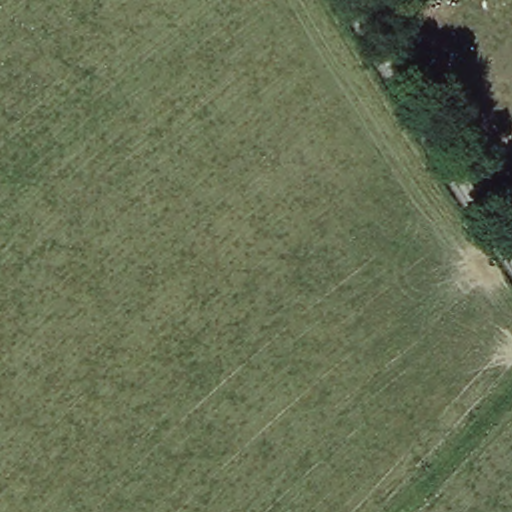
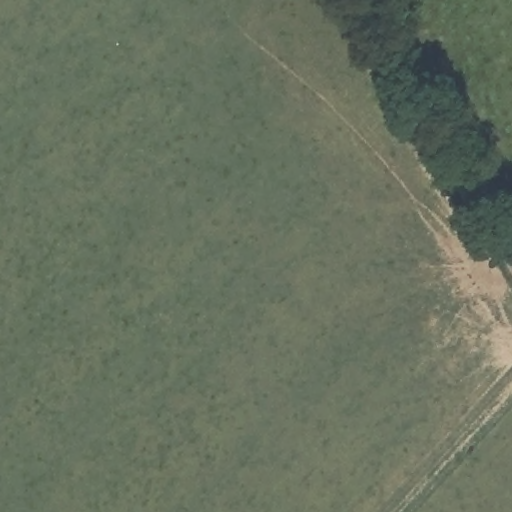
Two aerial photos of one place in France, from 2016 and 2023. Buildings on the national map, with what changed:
[]

